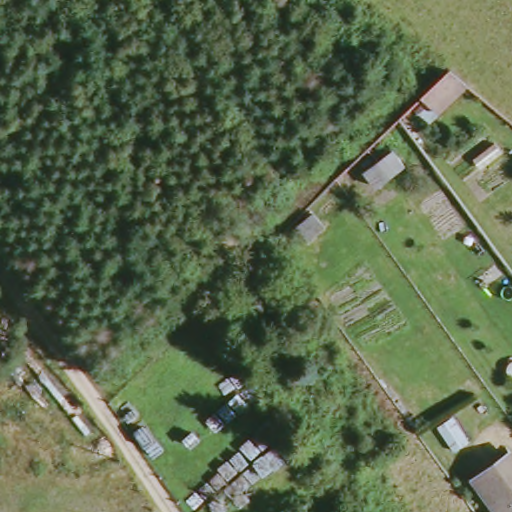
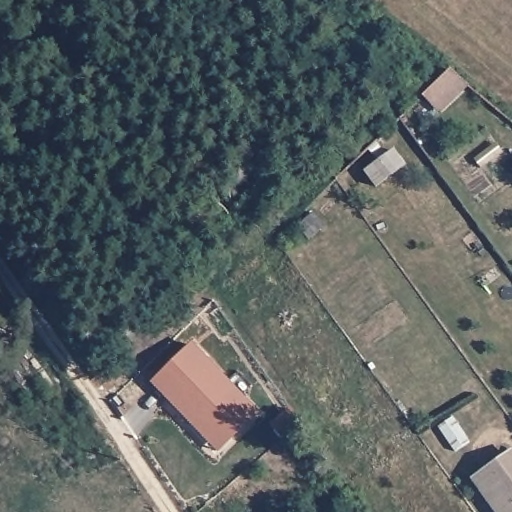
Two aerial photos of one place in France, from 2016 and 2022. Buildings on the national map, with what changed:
unchanged [(467,84),(442,111),(424,95),(450,70),(467,84)]
unchanged [(374,143),(386,156),(394,151),(403,166),(376,186),(357,159),(374,143)]
unchanged [(322,226),(309,239),(297,224),(313,213),(322,226)]
new [(153,383),(193,343),(260,412),(218,452),(153,383)]
unchanged [(467,440),(454,448),(441,427),(452,418),(467,440)]
unchanged [(492,512),(473,484),(512,457),(512,512),(492,512)]

